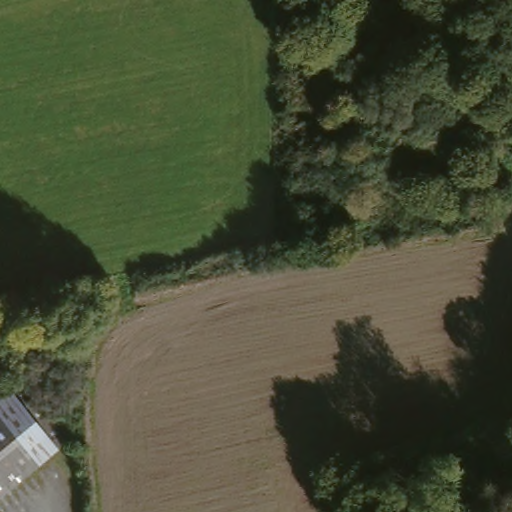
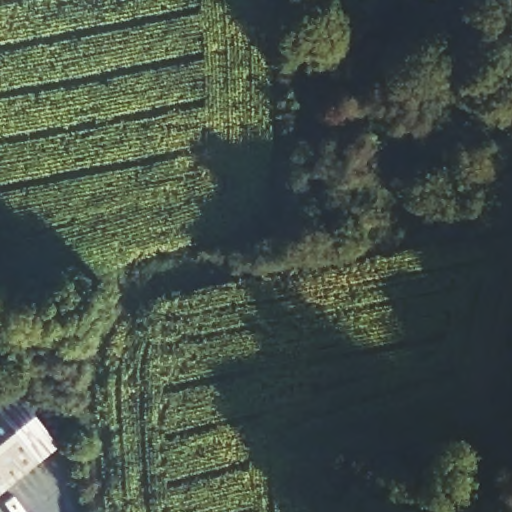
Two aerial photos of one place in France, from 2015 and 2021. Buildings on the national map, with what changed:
unchanged [(68,440),(0,494),(0,399),(23,381),(68,440)]

